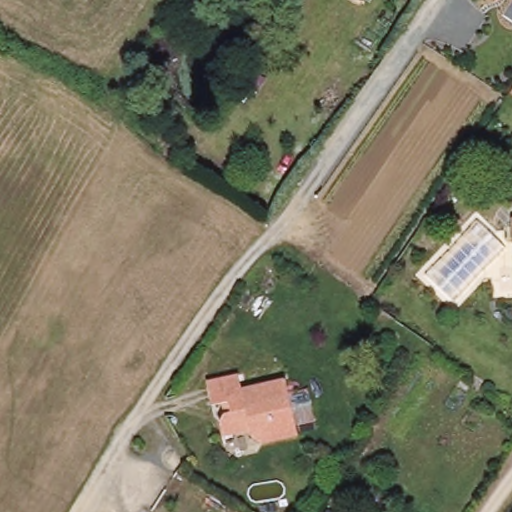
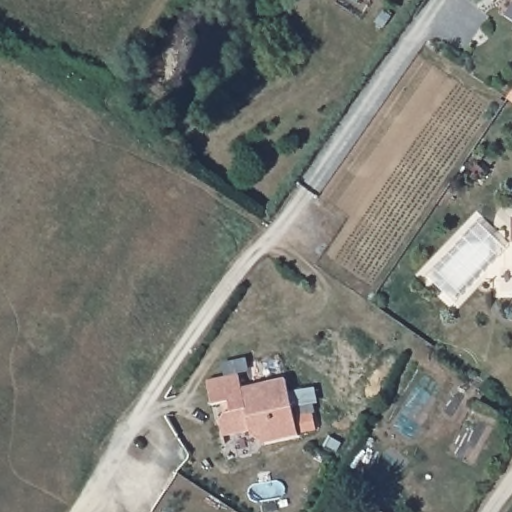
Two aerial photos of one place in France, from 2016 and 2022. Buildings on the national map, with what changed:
unchanged [(512,2),(509,0),(512,0),(512,2)]
unchanged [(512,95),(512,102),(508,100),(512,95)]
unchanged [(508,221),(512,221),(512,244),(508,244),(508,221)]
unchanged [(223,402),(207,405),(201,382),(233,375),(238,390),(281,380),(293,435),(258,444),(244,434),(243,430),(218,436),(214,422),(220,414),(225,413),(223,402)]

